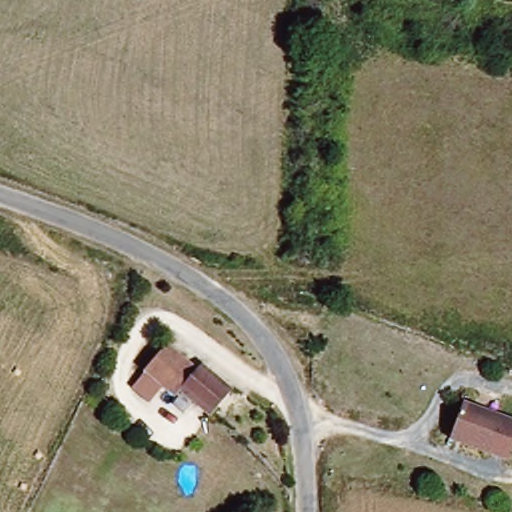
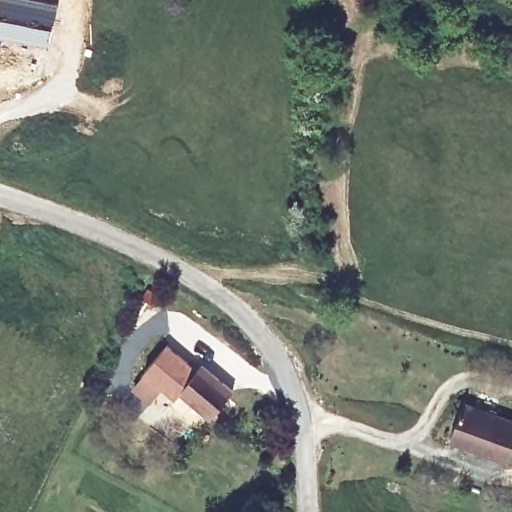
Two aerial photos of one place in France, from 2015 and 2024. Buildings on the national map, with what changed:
new [(50,45),(0,33),(0,0),(41,0),(59,4),(50,45)]
unchanged [(198,370),(203,365),(234,391),(211,418),(180,391),(175,397),(145,371),(168,345),(198,370)]
unchanged [(453,438),(468,402),(512,419),(512,456),(510,461),(453,438)]

